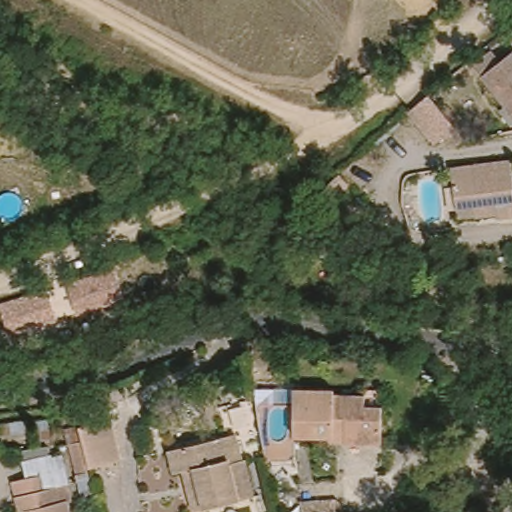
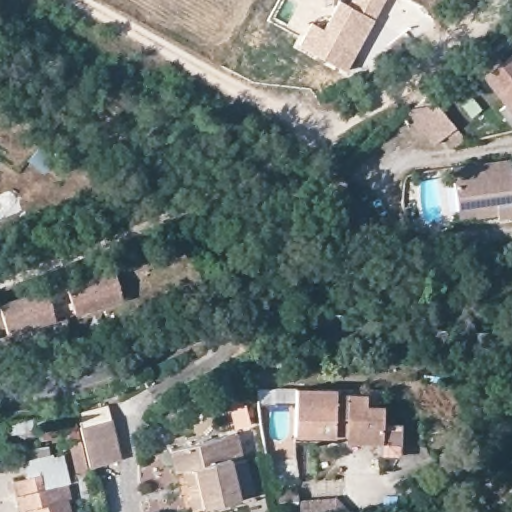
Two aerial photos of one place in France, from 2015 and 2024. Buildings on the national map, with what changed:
new [(300,44),(311,23),(322,28),(339,0),(347,5),(350,0),(385,0),(373,20),(345,70),(300,44)]
unchanged [(503,67),(512,60),(512,117),(477,68),(493,55),(503,67)]
unchanged [(448,149),(442,141),(430,148),(401,111),(423,93),(425,91),(453,130),(459,139),(448,149)]
unchanged [(456,207),(447,169),(507,154),(511,177),(512,176),(512,211),(502,214),(501,211),(474,219),(469,204),(456,207)]
unchanged [(340,179),(351,189),(330,210),(320,199),(340,179)]
unchanged [(237,248),(236,270),(215,269),(214,248),(237,248)]
unchanged [(116,272),(125,300),(71,318),(65,286),(116,272)]
unchanged [(45,293),(53,323),(3,337),(0,325),(0,304),(45,293)]
unchanged [(295,443),(295,434),(298,388),(333,387),(334,394),(366,392),(366,405),(382,404),(381,443),(344,443),(331,443),(314,443),(301,443),(295,443)]
unchanged [(85,428),(114,422),(120,463),(91,468),(85,428)]
unchanged [(183,471),(172,473),(168,449),(221,439),(226,462),(244,458),(252,499),(203,509),(191,511),(183,471)]
unchanged [(67,456),(80,453),(86,483),(73,486),(67,456)]
unchanged [(12,479),(42,474),(45,488),(70,484),(75,503),(69,504),(71,512),(27,512),(19,512),(12,479)]

